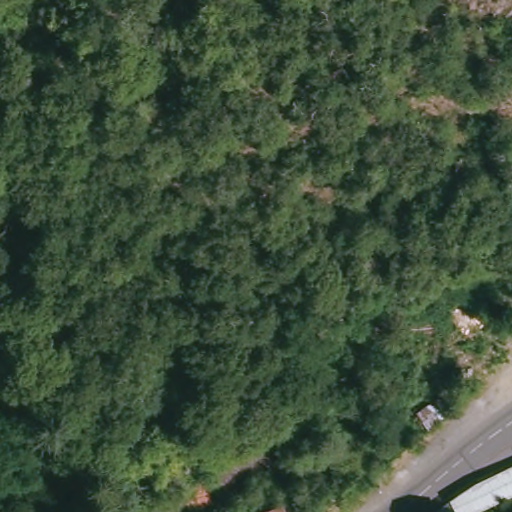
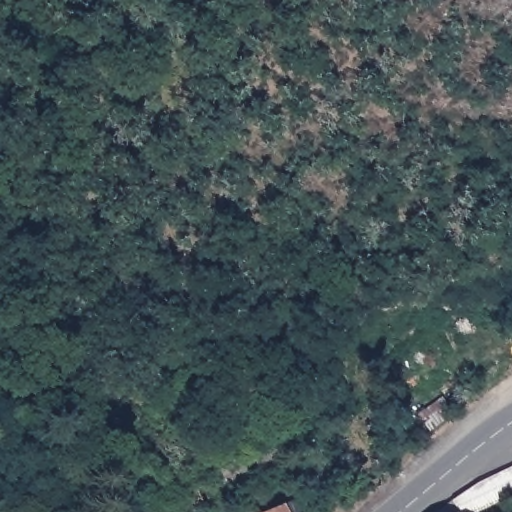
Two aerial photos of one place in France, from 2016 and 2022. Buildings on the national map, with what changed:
unchanged [(415,412),(439,393),(453,410),(427,431),(415,412)]
unchanged [(163,505),(158,492),(210,468),(225,507),(212,512),(144,512),(163,505)]
unchanged [(478,512),(475,512),(470,508),(465,512),(444,512),(477,486),(512,470),(512,493),(486,502),(478,512)]
unchanged [(303,503),(306,512),(280,512),(303,503)]

